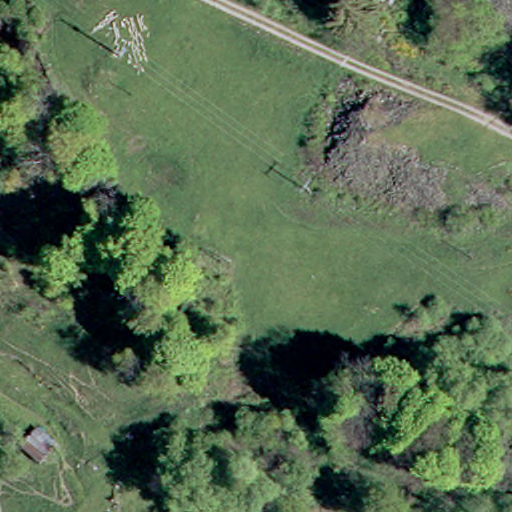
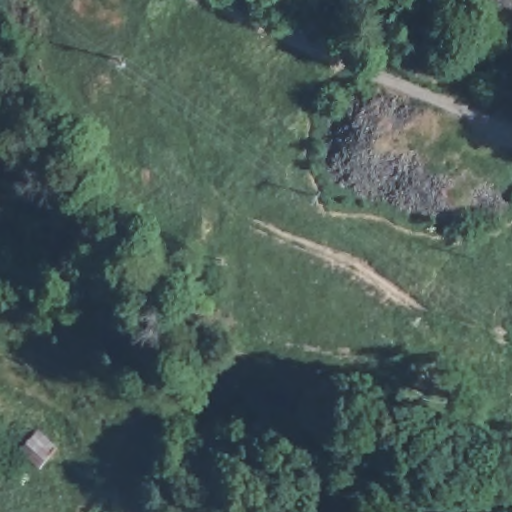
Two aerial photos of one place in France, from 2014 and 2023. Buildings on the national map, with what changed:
unchanged [(52,437),(35,457),(15,438),(31,419),(52,437)]

